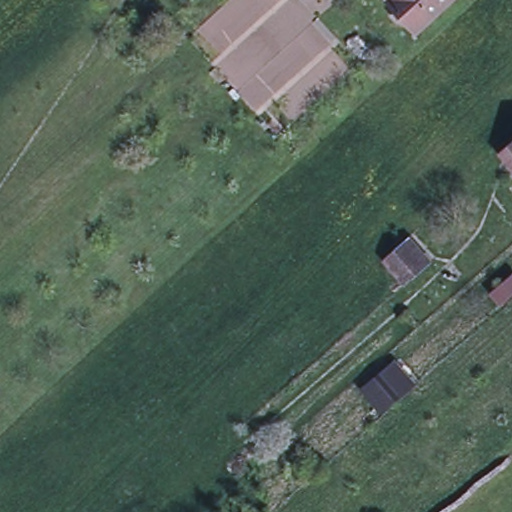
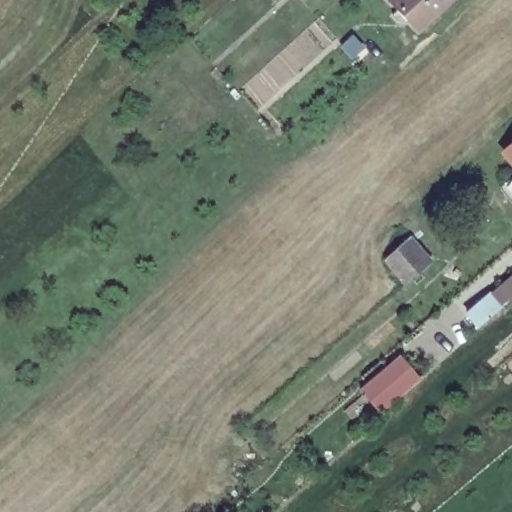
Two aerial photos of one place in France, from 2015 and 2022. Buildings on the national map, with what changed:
unchanged [(418,29),(391,0),(392,0),(450,0),(418,29)]
unchanged [(512,156),(507,151),(512,147),(512,156)]
unchanged [(408,238),(429,264),(408,282),(386,257),(408,238)]
unchanged [(491,292),(512,276),(512,295),(501,304),(491,292)]
unchanged [(405,386),(381,405),(366,387),(390,367),(405,386)]

